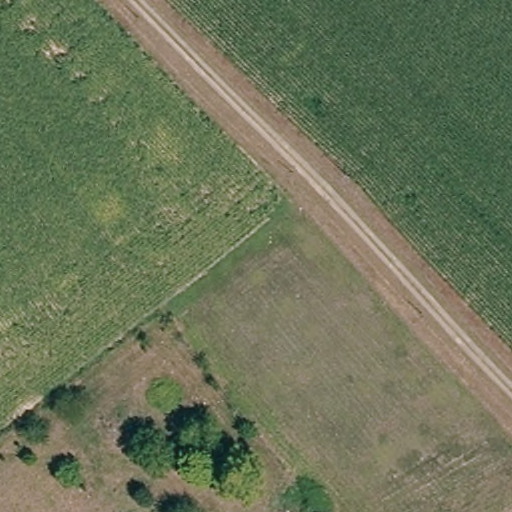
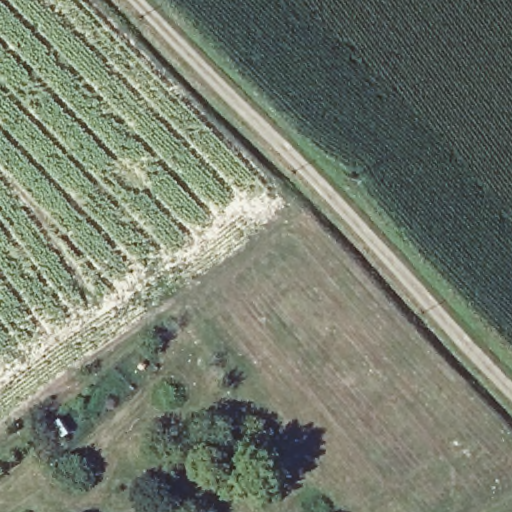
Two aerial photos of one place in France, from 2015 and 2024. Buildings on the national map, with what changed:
[]

